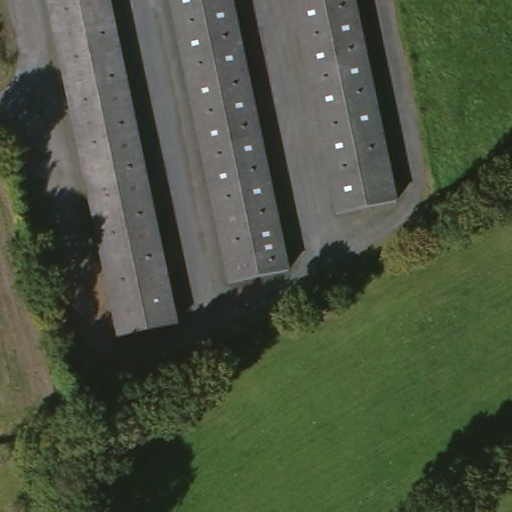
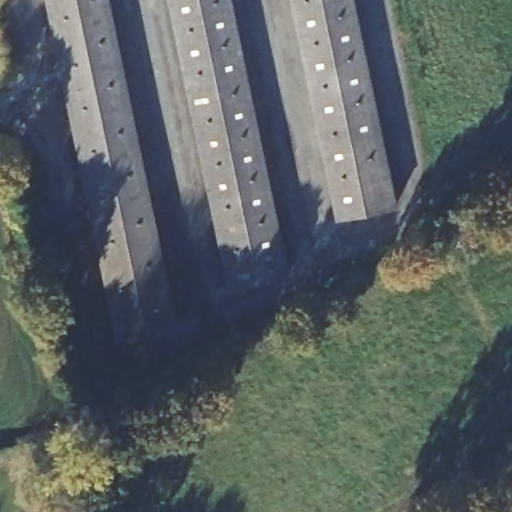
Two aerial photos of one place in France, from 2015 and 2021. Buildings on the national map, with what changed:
unchanged [(121,336),(53,0),(113,0),(181,323),(121,336)]
unchanged [(238,286),(180,0),(240,0),(297,273),(238,286)]
unchanged [(342,216),(296,0),(358,0),(401,204),(342,216)]

